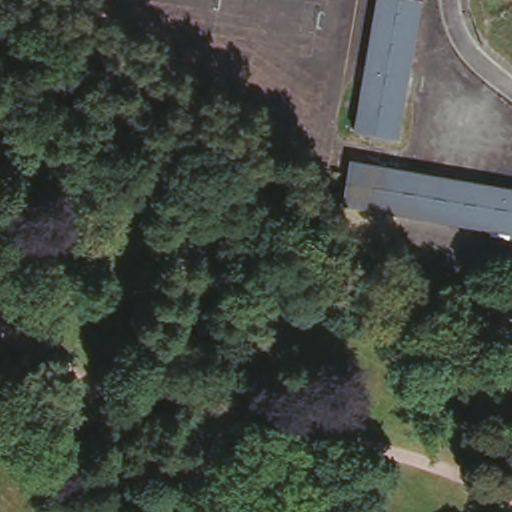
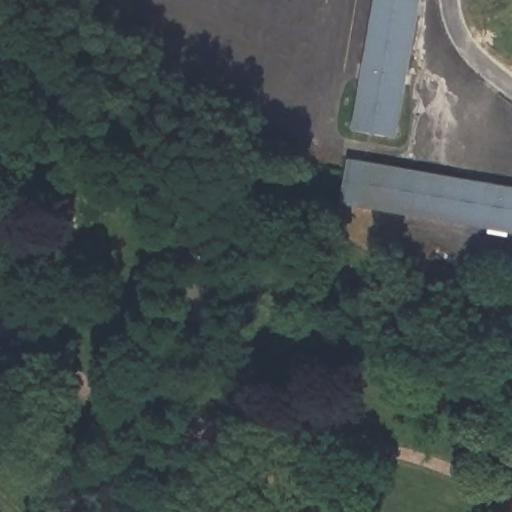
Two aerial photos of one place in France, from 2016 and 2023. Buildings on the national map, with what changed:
unchanged [(355,136),(377,0),(421,0),(396,143),(355,136)]
unchanged [(512,195),(512,239),(342,208),(350,166),(512,195)]

